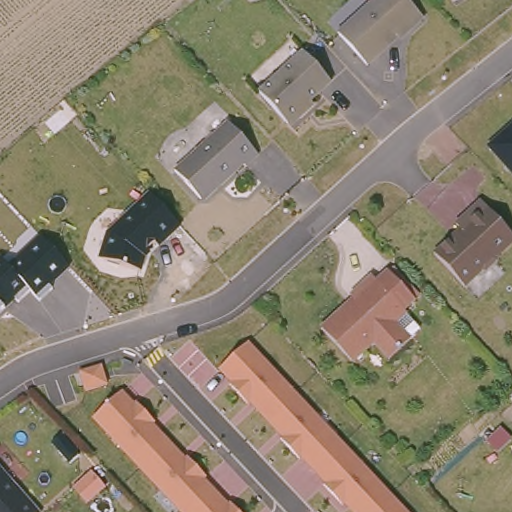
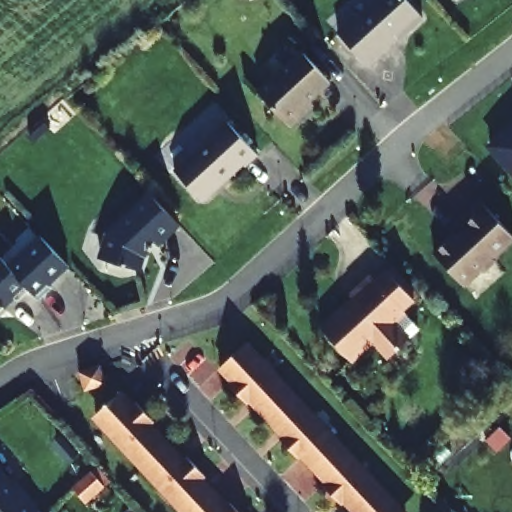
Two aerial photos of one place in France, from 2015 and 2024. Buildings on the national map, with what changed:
unchanged [(408,0),(422,16),(405,29),(366,63),(337,32),(372,0),(408,0)]
unchanged [(302,51),(330,80),(300,108),(300,115),(292,122),(285,121),(258,92),(302,51)]
unchanged [(257,153),(245,165),(243,163),(205,197),(200,197),(175,169),(227,120),(257,153)]
unchanged [(512,170),(490,145),(512,126),(512,170)]
unchanged [(142,271),(100,259),(106,231),(151,192),(181,226),(145,257),(142,271)]
unchanged [(455,237),(461,230),(455,223),(480,200),(512,235),(512,240),(495,256),(495,259),(485,269),(481,269),(463,285),(434,253),(452,235),(455,237)]
unchanged [(9,265),(40,235),(69,265),(48,285),(52,288),(40,299),(35,296),(30,289),(17,301),(15,298),(0,313),(0,257),(9,265)]
unchanged [(373,345),(351,364),(320,331),(348,305),(350,307),(355,303),(350,298),(371,279),(376,284),(387,274),(413,303),(402,313),(405,315),(420,332),(409,342),(388,362),(373,345)]
unchanged [(345,506),(344,507),(323,486),(325,484),(301,458),(300,460),(280,439),(282,437),(250,401),(247,404),(228,384),(230,382),(218,369),(248,342),(408,512),(352,512),(345,506)]
unchanged [(134,403),(136,401),(156,422),(153,425),(185,459),(187,456),(207,477),(205,479),(228,505),(231,503),(239,512),(179,512),(92,419),(122,390),(134,403)]
unchanged [(37,512),(0,512),(0,471),(37,512)]

